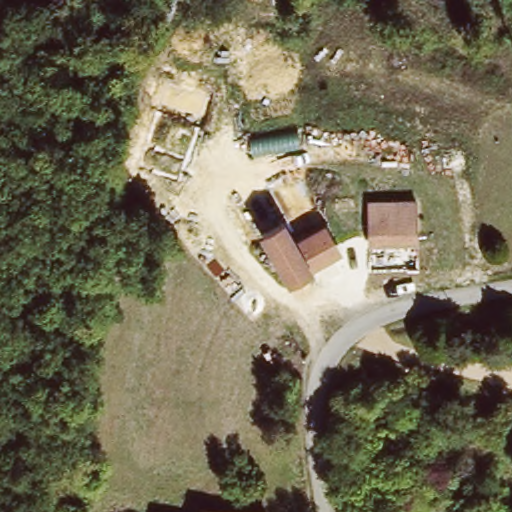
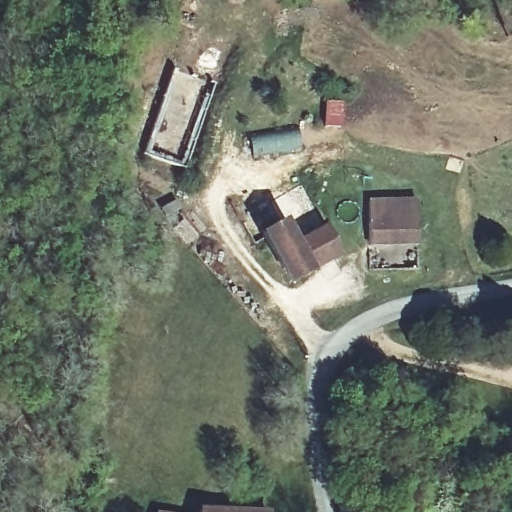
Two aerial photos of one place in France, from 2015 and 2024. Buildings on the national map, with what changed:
unchanged [(372,242),(368,204),(416,198),(420,236),(421,240),(372,246),(372,242)]
unchanged [(312,276),(295,290),(261,246),(280,231),(295,251),(323,230),(328,236),(341,254),(312,276)]

